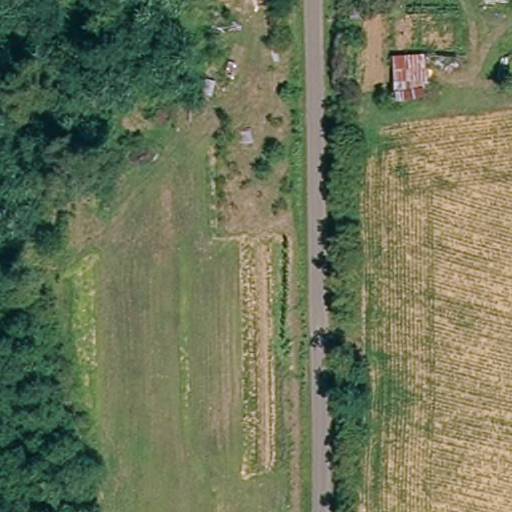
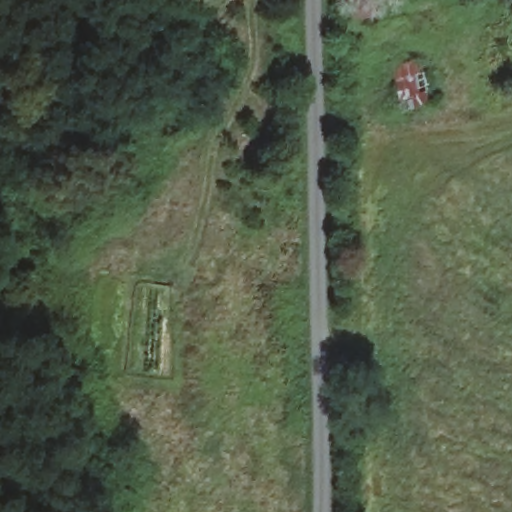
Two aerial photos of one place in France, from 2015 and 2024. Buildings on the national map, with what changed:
unchanged [(201,4),(201,0),(226,0),(226,4),(201,4)]
unchanged [(435,75),(434,102),(399,101),(397,53),(459,53),(458,73),(435,75)]

